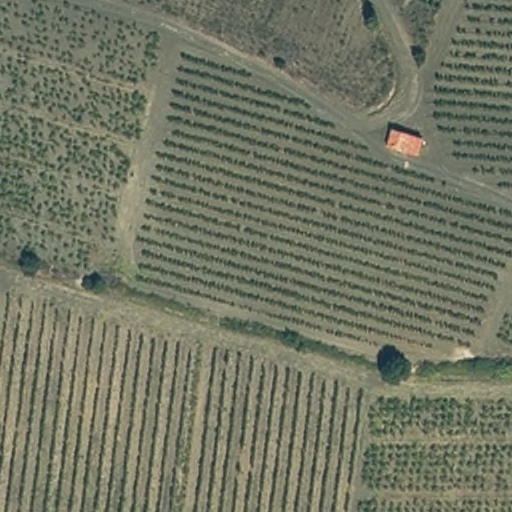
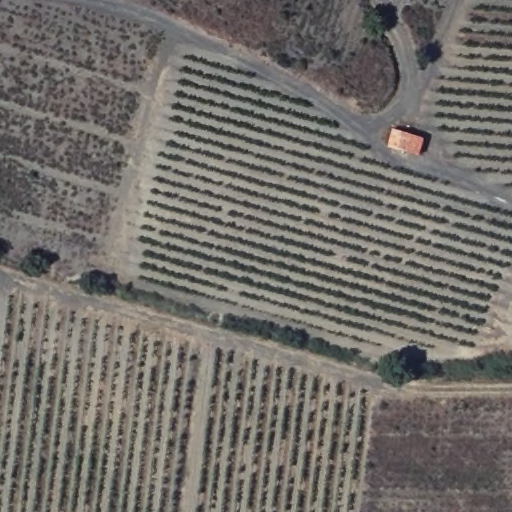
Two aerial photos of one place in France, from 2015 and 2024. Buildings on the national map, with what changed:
unchanged [(416,155),(384,141),(389,125),(421,136),(416,155)]

